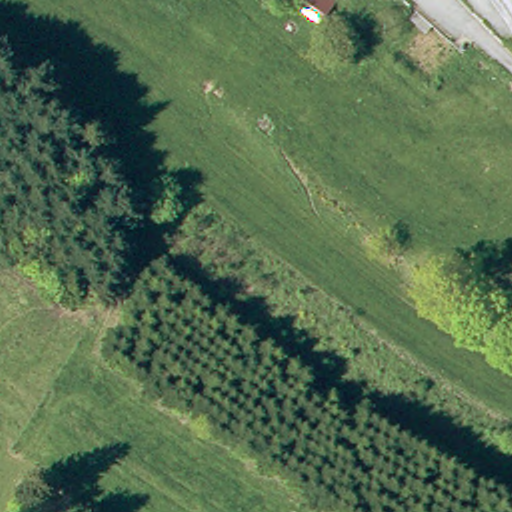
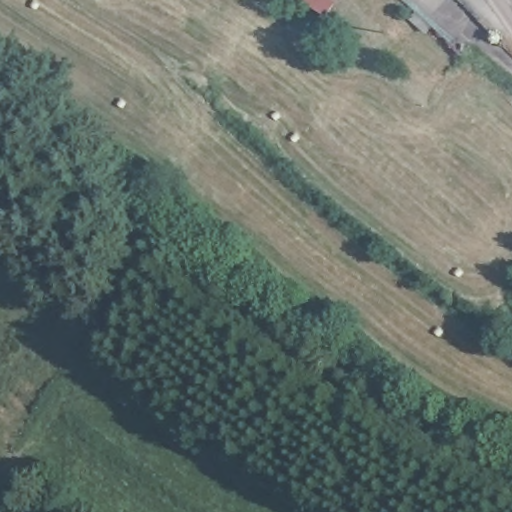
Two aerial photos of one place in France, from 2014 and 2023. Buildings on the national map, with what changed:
unchanged [(342,7),(330,20),(321,12),(307,0),(334,0),(342,7)]

